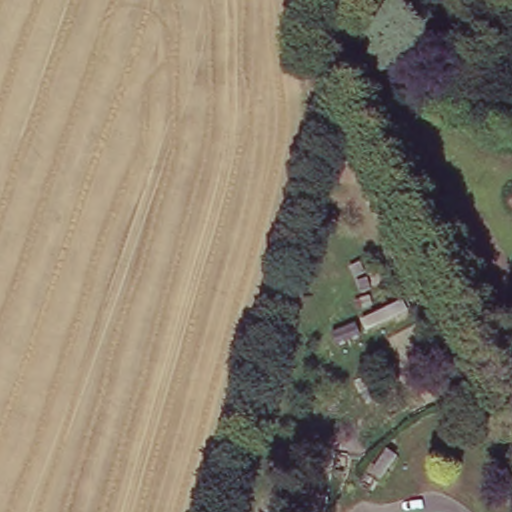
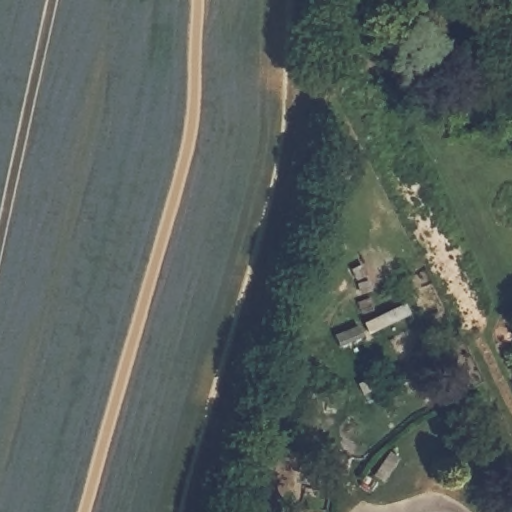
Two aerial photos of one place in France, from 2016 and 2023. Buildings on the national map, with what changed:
unchanged [(346,95),(333,91),(336,80),(349,85),(346,95)]

